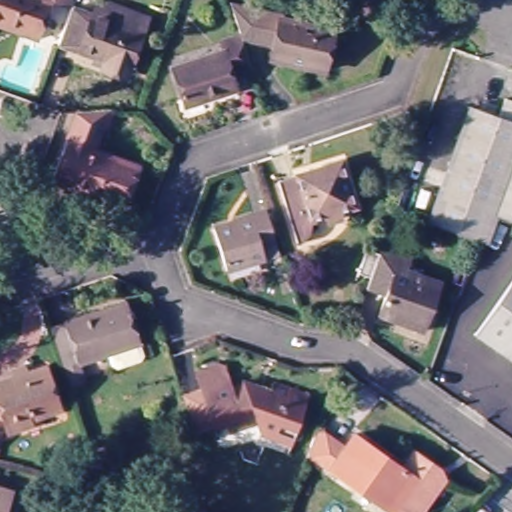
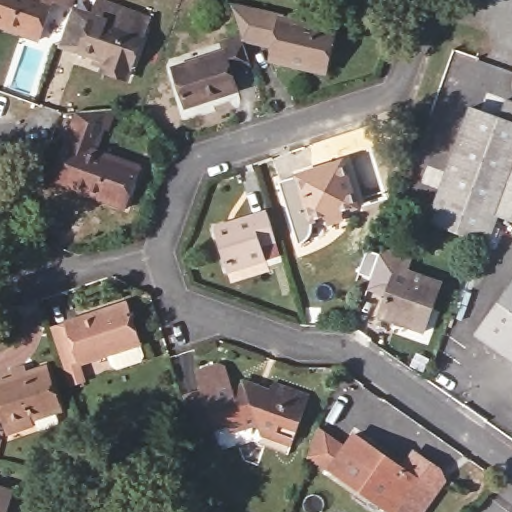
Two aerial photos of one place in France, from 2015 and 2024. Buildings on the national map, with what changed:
unchanged [(75,14),(56,7),(42,44),(0,28),(0,0),(45,0),(50,1),(50,0),(80,0),(76,11),(75,14)]
unchanged [(239,29),(229,0),(232,0),(281,10),(280,12),(335,24),(325,67),(280,58),(271,56),(273,44),(241,36),(239,29)]
unchanged [(104,76),(106,70),(107,65),(62,49),(75,14),(76,11),(97,19),(104,2),(130,11),(153,20),(147,36),(131,79),(129,85),(104,76)]
unchanged [(250,62),(232,69),(236,85),(184,101),(172,62),(222,45),(220,35),(239,29),(241,36),(250,62)]
unchanged [(512,99),(512,221),(496,214),(484,241),(428,217),(475,105),(502,117),(511,99),(512,99)]
unchanged [(140,174),(126,215),(95,203),(96,200),(87,196),(86,200),(53,187),(79,116),(111,114),(115,114),(108,134),(105,133),(98,157),(140,174)]
unchanged [(359,207),(345,211),(344,219),(341,221),(335,221),(332,216),(315,221),(315,236),(310,240),(301,246),(281,182),(336,165),(348,170),(359,207)]
unchanged [(267,259),(230,272),(216,228),(267,211),(276,240),(281,254),(267,259)]
unchanged [(399,259),(395,269),(448,292),(428,340),(375,318),(382,300),(358,290),(360,282),(363,275),(349,269),(350,266),(358,246),(372,251),(373,247),(399,259)]
unchanged [(512,292),(512,363),(478,338),(512,292)]
unchanged [(145,337),(145,338),(150,353),(121,363),(116,347),(81,358),(87,376),(74,380),(68,362),(55,322),(132,297),(145,337)]
unchanged [(65,410),(36,420),(37,425),(13,434),(0,393),(0,384),(19,377),(16,368),(30,363),(33,372),(50,366),(65,410)]
unchanged [(285,432),(283,440),(268,435),(265,425),(236,434),(234,427),(220,430),(202,371),(222,365),(229,368),(235,388),(251,383),(275,392),(278,385),(315,398),(300,438),(285,432)]
unchanged [(405,464),(430,485),(431,492),(414,512),(368,512),(323,474),(307,460),(320,427),(345,448),(350,442),(392,478),(405,464)]
unchanged [(16,512),(0,512),(0,489),(21,496),(16,512)]

